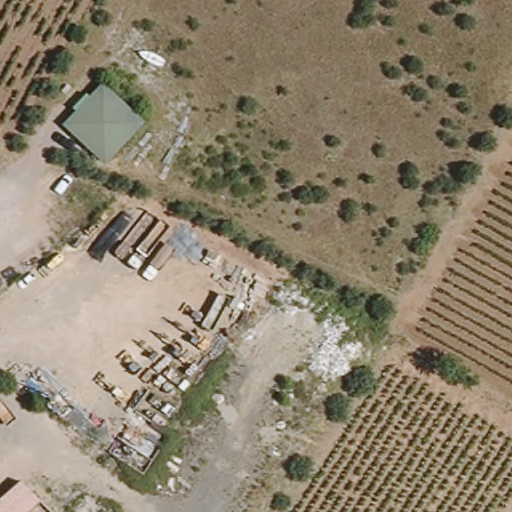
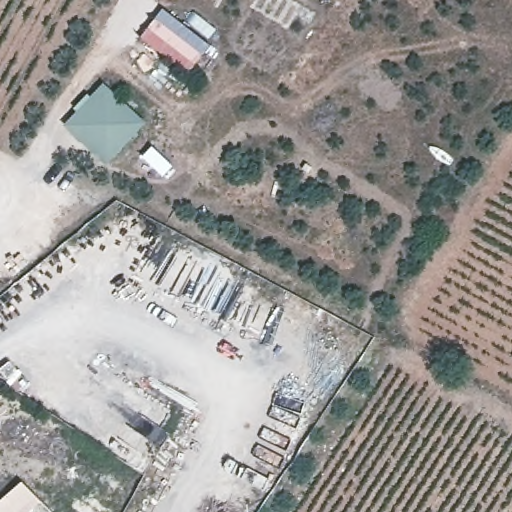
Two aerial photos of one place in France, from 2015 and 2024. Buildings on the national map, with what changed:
new [(209,46),(186,74),(140,39),(163,10),(209,46)]
unchanged [(136,122),(100,157),(65,123),(102,87),(136,122)]
unchanged [(38,502),(25,512),(0,512),(0,503),(25,483),(38,502)]

